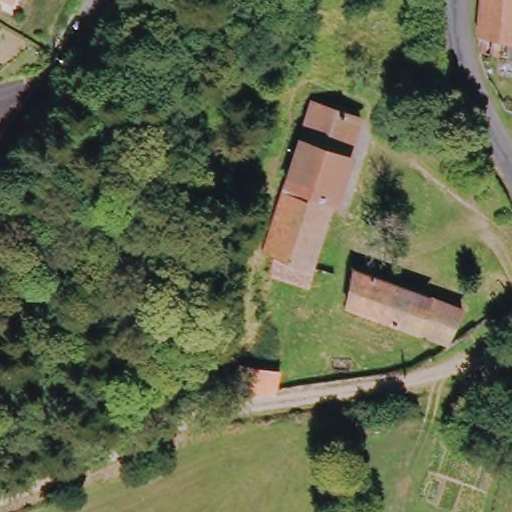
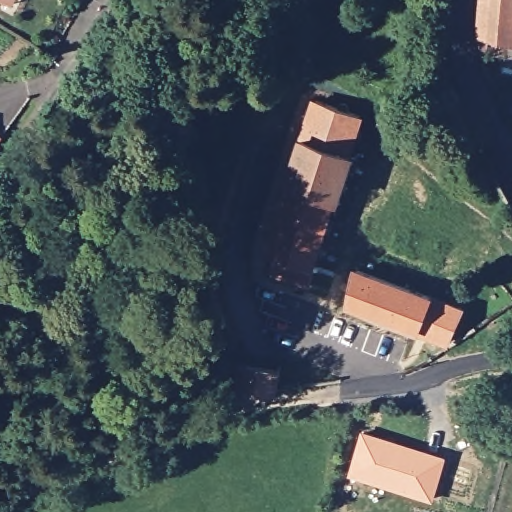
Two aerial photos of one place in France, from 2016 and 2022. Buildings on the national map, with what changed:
unchanged [(0,1),(0,0),(5,0),(4,3),(0,1)]
unchanged [(512,0),(512,57),(477,54),(478,39),(480,0),(512,0)]
unchanged [(277,251),(265,247),(322,102),(369,119),(354,158),(358,160),(342,203),(338,202),(305,285),(268,273),(277,251)]
unchanged [(347,308),(360,273),(469,315),(456,349),(347,308)]
unchanged [(212,368),(223,342),(232,345),(259,356),(246,379),(212,368)]
new [(397,443),(396,447),(422,455),(423,451),(445,457),(433,498),(351,475),(363,434),(397,443)]

